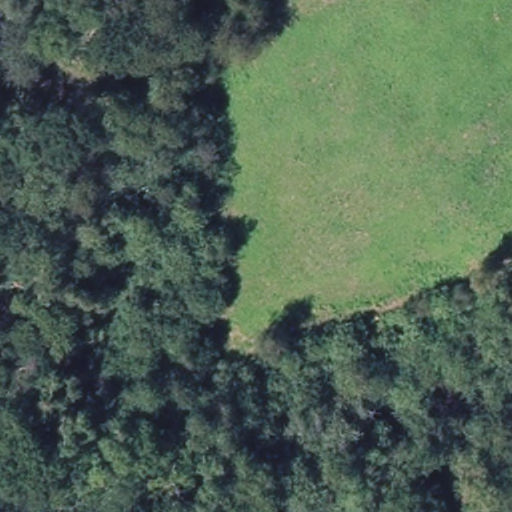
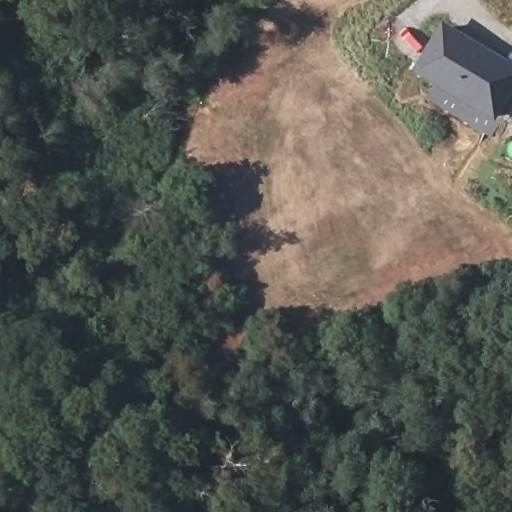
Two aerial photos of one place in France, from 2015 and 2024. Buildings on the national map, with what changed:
new [(512,63),(512,93),(496,120),(415,73),(444,23),(512,63)]
unchanged [(127,362),(109,398),(97,368),(115,350),(127,362)]

